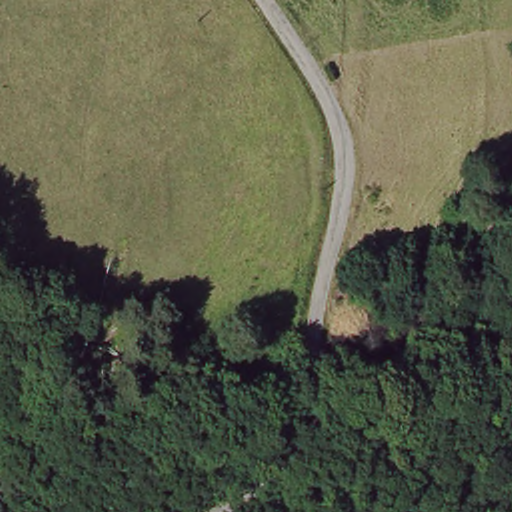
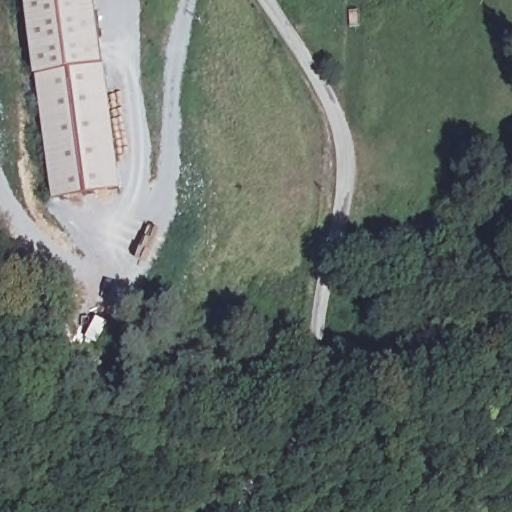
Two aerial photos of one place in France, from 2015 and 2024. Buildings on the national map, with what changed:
new [(35,75),(25,0),(96,0),(105,66),(121,189),(51,199),(35,75)]

